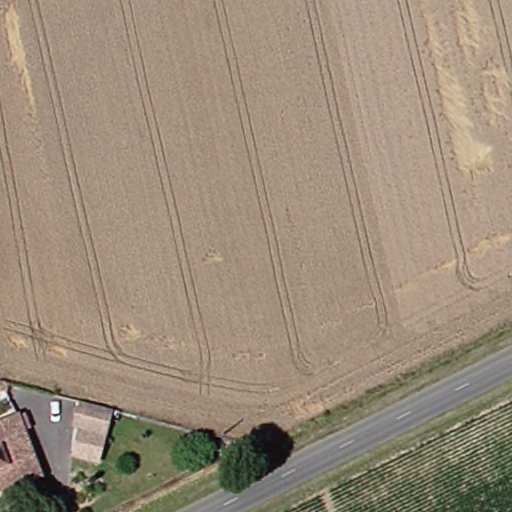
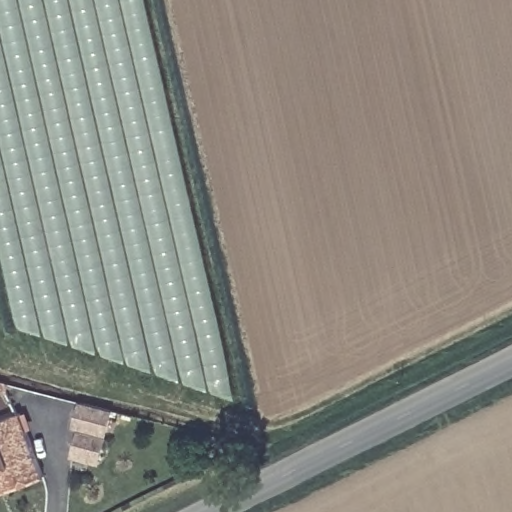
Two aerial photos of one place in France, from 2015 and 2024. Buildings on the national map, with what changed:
new [(18,327),(0,245),(0,0),(148,0),(236,399),(18,327)]
new [(71,464),(78,438),(73,436),(83,403),(119,412),(109,446),(101,472),(71,464)]
demolished [(132,454),(101,446),(96,443),(106,410),(142,419),(132,454)]
unchanged [(45,474),(12,488),(4,473),(0,474),(0,421),(20,413),(45,474)]

